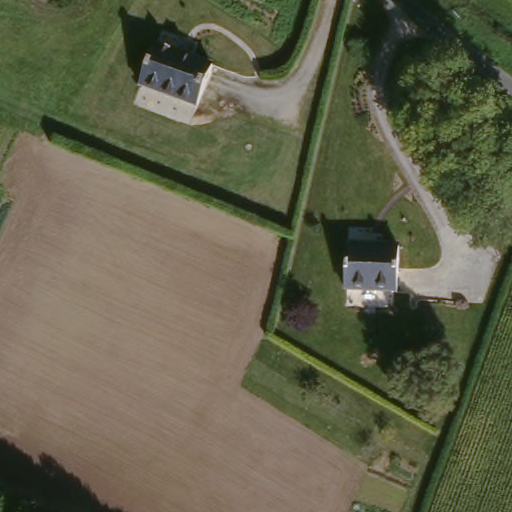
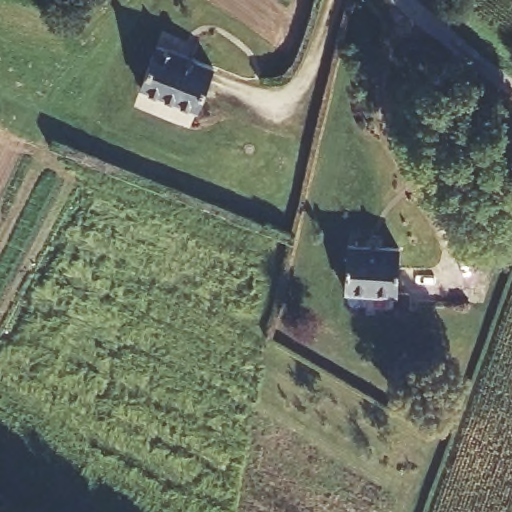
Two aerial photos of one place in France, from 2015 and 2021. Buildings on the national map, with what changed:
unchanged [(164,42),(219,62),(205,105),(149,87),(164,42)]
unchanged [(349,240),(400,239),(400,286),(348,286),(349,240)]

